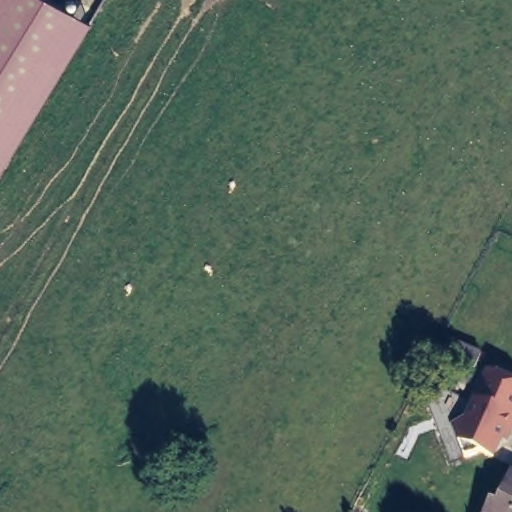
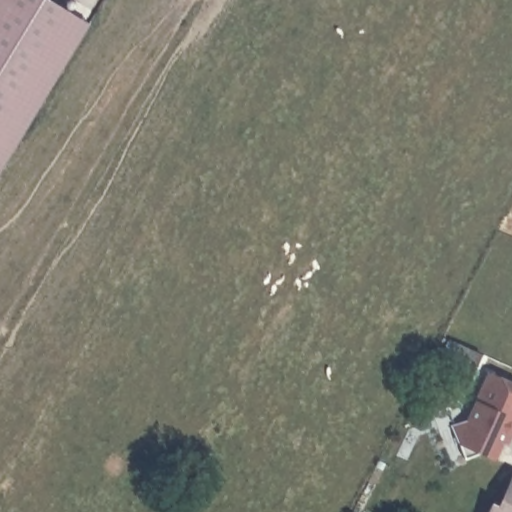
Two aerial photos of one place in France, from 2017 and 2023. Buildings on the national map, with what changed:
unchanged [(0,170),(0,0),(53,0),(88,22),(0,170)]
unchanged [(478,352),(460,388),(440,380),(458,343),(478,352)]
unchanged [(503,439),(495,458),(476,450),(462,457),(450,424),(464,420),(489,368),(512,381),(512,436),(510,441),(503,439)]
unchanged [(512,512),(501,512),(512,491),(512,512)]
unchanged [(501,512),(493,512),(495,509),(501,512)]

